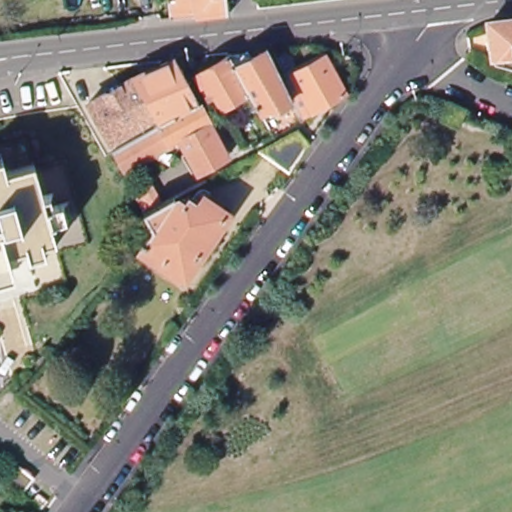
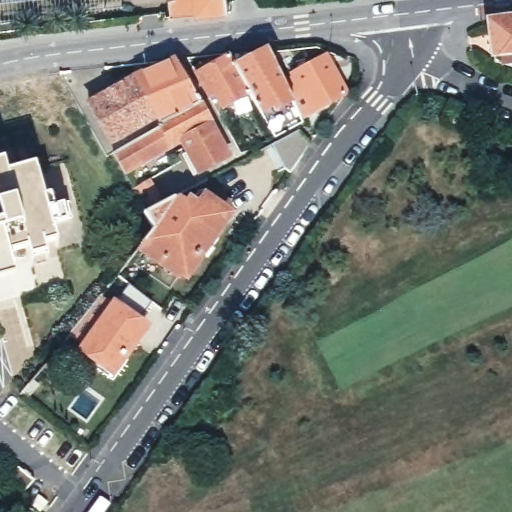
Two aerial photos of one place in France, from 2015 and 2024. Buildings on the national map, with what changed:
unchanged [(182,0),(228,0),(229,12),(183,17),(175,19),(173,1),(182,0)]
unchanged [(491,15),(512,13),(512,58),(495,51),(494,48),(491,15)]
unchanged [(250,45),(253,51),(267,45),(292,96),(275,104),(273,100),(261,106),(251,89),(231,54),(250,45)]
unchanged [(316,105),(315,102),(305,107),(297,94),(307,89),(296,69),(329,52),(348,87),(316,105)]
unchanged [(224,102),(217,89),(211,92),(195,63),(212,55),(215,60),(231,54),(251,89),(224,102)]
unchanged [(202,99),(167,119),(162,110),(140,72),(177,55),(202,99)]
unchanged [(117,135),(122,144),(117,146),(111,150),(97,127),(106,122),(92,97),(140,72),(162,110),(117,135)]
unchanged [(122,144),(167,119),(202,99),(212,115),(182,131),(172,136),(174,137),(127,163),(117,146),(122,144)]
unchanged [(467,114),(461,127),(447,120),(452,107),(467,114)]
unchanged [(232,152),(225,155),(223,151),(200,162),(187,140),(182,131),(212,115),(232,152)]
unchanged [(241,145),(234,132),(250,124),(257,137),(241,145)]
unchanged [(290,181),(260,159),(278,149),(298,138),(312,150),(290,181)]
unchanged [(7,154),(9,161),(12,171),(37,164),(41,176),(44,190),(49,189),(52,202),(59,200),(62,214),(51,217),(55,234),(45,237),(47,246),(32,250),(30,241),(10,247),(12,257),(15,267),(0,272),(0,156),(7,154)]
unchanged [(174,219),(180,212),(189,209),(200,216),(210,203),(232,219),(189,278),(180,282),(167,272),(169,267),(167,266),(161,268),(150,260),(152,252),(149,250),(160,236),(156,216),(140,187),(153,180),(169,209),(167,210),(169,215),(174,219)]
new [(112,298),(116,301),(128,284),(154,305),(143,318),(152,326),(114,377),(76,352),(80,344),(68,338),(102,295),(112,298)]
unchanged [(21,500),(4,486),(18,471),(34,483),(21,500)]

